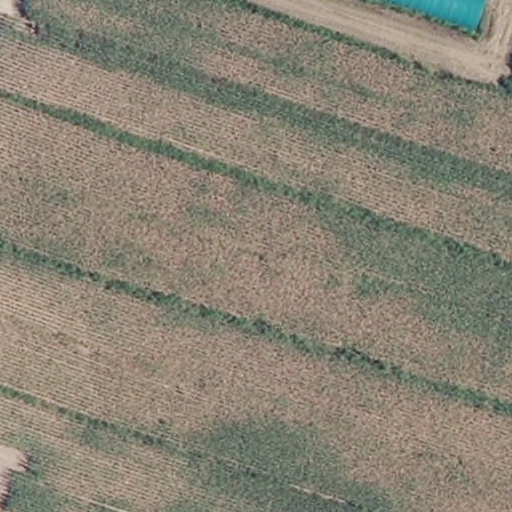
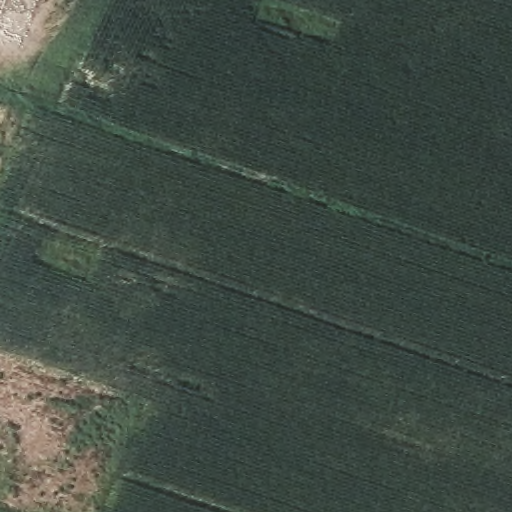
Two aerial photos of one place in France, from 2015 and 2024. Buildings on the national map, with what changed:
demolished [(479,26),(396,0),(486,0),(479,26)]

